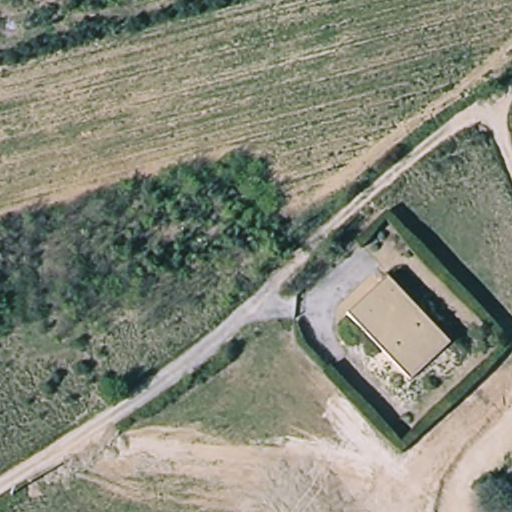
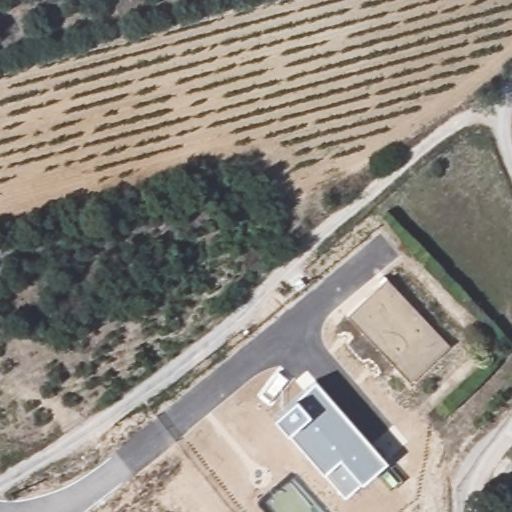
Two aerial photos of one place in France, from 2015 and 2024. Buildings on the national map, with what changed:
unchanged [(456,351),(413,391),(345,323),(390,281),(456,351)]
new [(362,484),(360,481),(345,498),(324,473),(288,431),(274,415),(296,396),(316,379),(387,461),(362,484)]

